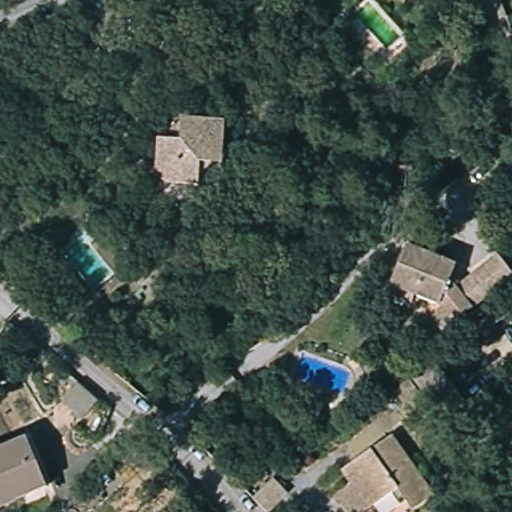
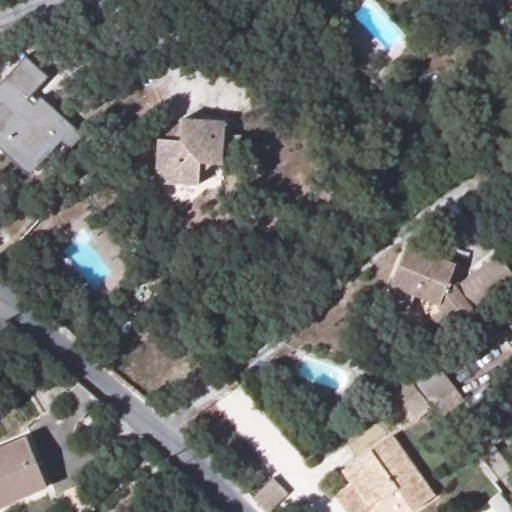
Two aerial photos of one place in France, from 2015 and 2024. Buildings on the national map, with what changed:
new [(31,97),(36,102),(39,98),(81,138),(69,152),(61,143),(28,177),(0,150),(0,84),(24,57),(48,79),(31,97)]
unchanged [(229,169),(221,168),(220,178),(211,177),(209,197),(181,195),(162,178),(164,154),(173,154),(190,143),(191,133),(232,136),(229,169)]
unchanged [(408,237),(458,257),(452,272),(457,279),(498,247),(512,264),(512,272),(444,326),(432,311),(443,302),(440,300),(391,280),(408,237)]
unchanged [(423,384),(445,366),(469,398),(446,415),(423,384)]
unchanged [(424,392),(447,420),(428,432),(408,406),(424,392)]
unchanged [(414,510),(398,489),(368,512),(345,512),(338,502),(354,490),(343,476),(397,435),(439,491),(414,510)]
unchanged [(13,502),(9,496),(0,499),(0,454),(28,442),(48,487),(13,502)]
unchanged [(279,479),(292,497),(273,512),(267,512),(254,498),(279,479)]

